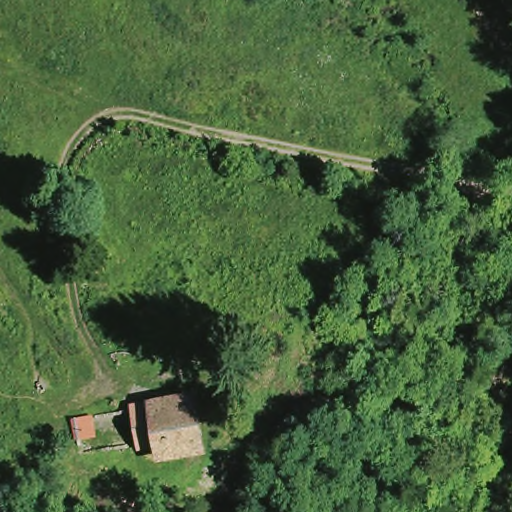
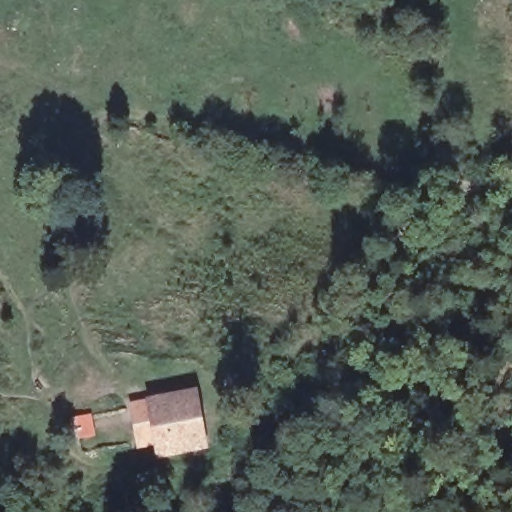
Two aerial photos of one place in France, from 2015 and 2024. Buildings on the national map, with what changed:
unchanged [(148,408),(191,401),(199,453),(158,461),(154,446),(148,408)]

